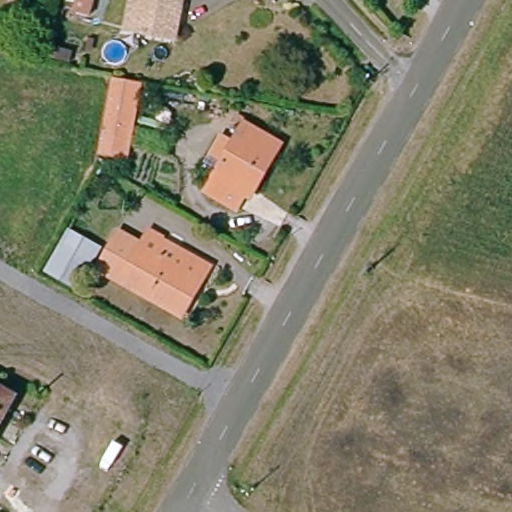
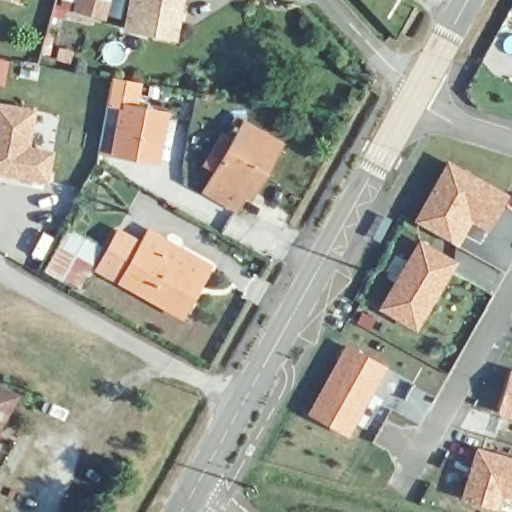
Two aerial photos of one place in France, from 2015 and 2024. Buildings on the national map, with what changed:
unchanged [(82,10),(84,0),(103,0),(101,13),(82,10)]
unchanged [(125,28),(130,0),(182,0),(177,36),(125,28)]
new [(142,83),(139,105),(171,111),(162,165),(111,156),(121,108),(107,106),(112,76),(142,83)]
new [(36,108),(29,145),(54,149),(49,178),(0,169),(0,101),(36,108)]
demolished [(135,133),(102,128),(107,105),(139,109),(135,133)]
unchanged [(246,189),(235,208),(203,193),(220,161),(209,153),(220,136),(232,140),(242,119),(279,141),(266,166),(252,193),(246,189)]
new [(446,159),(509,195),(487,232),(471,223),(457,247),(411,221),(446,159)]
unchanged [(105,250),(93,270),(79,293),(39,272),(65,226),(105,250)]
unchanged [(166,312),(93,270),(105,250),(114,234),(147,254),(157,241),(174,252),(204,270),(197,281),(175,317),(166,312)]
new [(418,238),(458,262),(416,333),(376,309),(418,238)]
new [(346,342),(389,367),(348,439),(305,414),(346,342)]
new [(512,370),(512,420),(495,415),(510,369),(512,370)]
new [(397,398),(402,401),(412,384),(433,398),(418,424),(392,409),(397,398)]
unchanged [(0,426),(0,390),(15,399),(9,410),(0,426)]
new [(470,407),(500,417),(494,437),(461,427),(470,407)]
new [(512,458),(512,501),(507,500),(504,512),(499,512),(460,499),(475,447),(512,458)]

